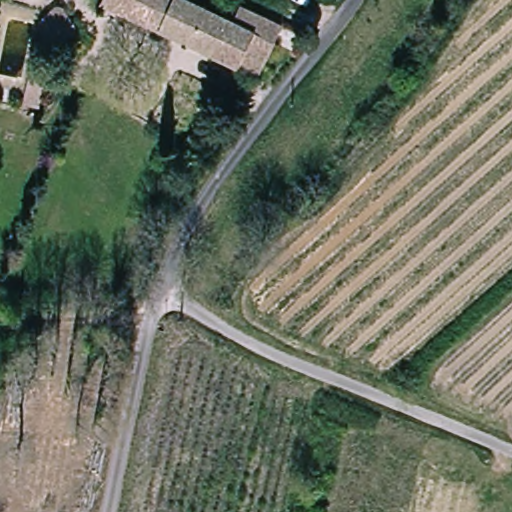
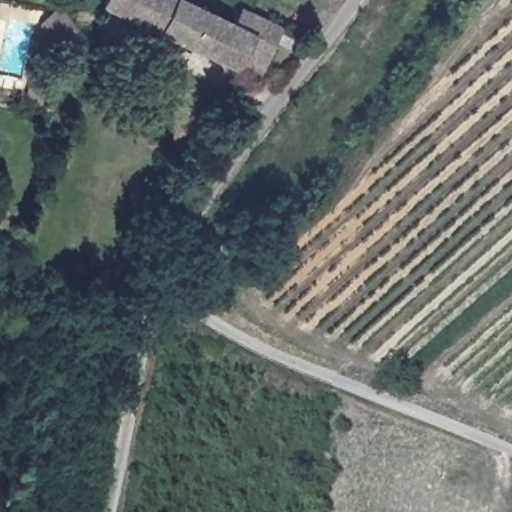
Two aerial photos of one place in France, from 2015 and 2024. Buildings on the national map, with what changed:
unchanged [(109,7),(113,0),(182,0),(236,26),(244,10),(284,30),(260,82),(109,7)]

